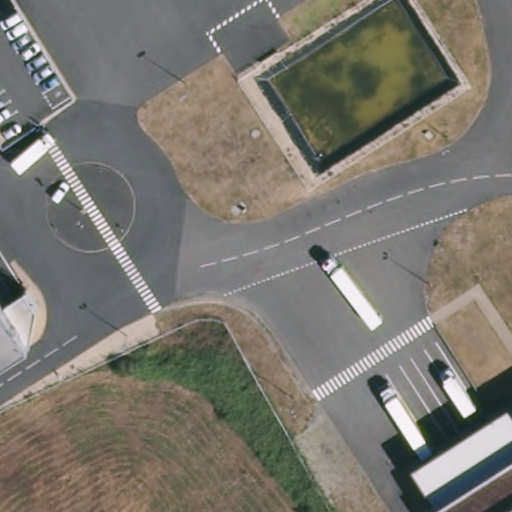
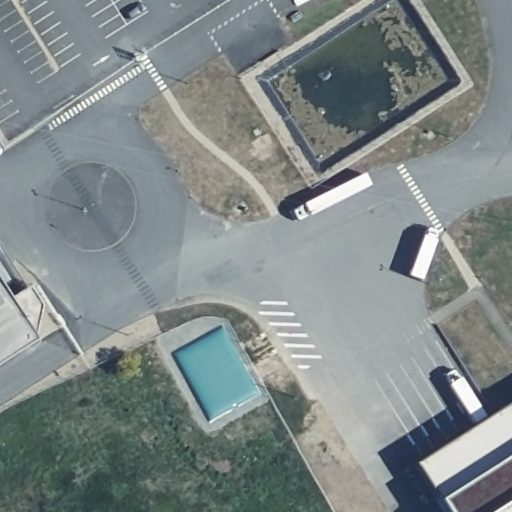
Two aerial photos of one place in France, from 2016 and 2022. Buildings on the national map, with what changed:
unchanged [(25,287),(37,305),(29,340),(0,359),(0,296),(4,302),(25,287)]
unchanged [(448,512),(443,503),(417,462),(512,402),(512,512),(448,512)]

